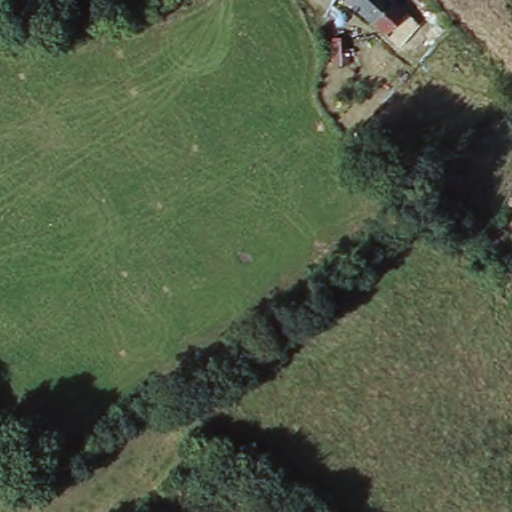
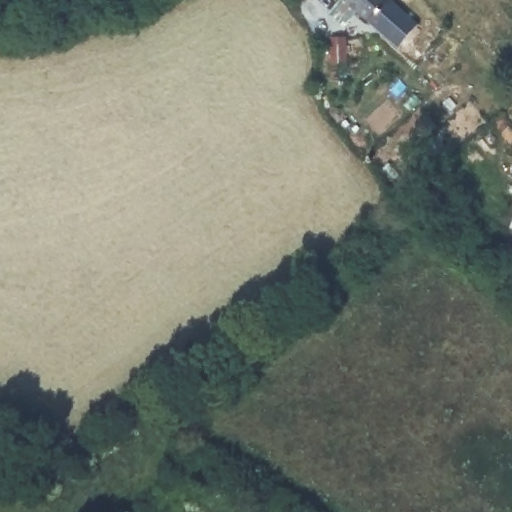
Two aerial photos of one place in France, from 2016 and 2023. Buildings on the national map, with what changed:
unchanged [(396,41),(336,9),(341,0),(382,0),(407,14),(409,8),(428,21),(409,51),(396,41)]
unchanged [(349,40),(359,68),(345,72),(333,46),(349,40)]

